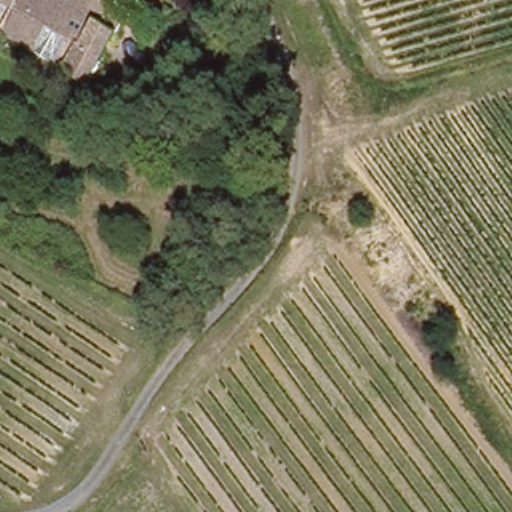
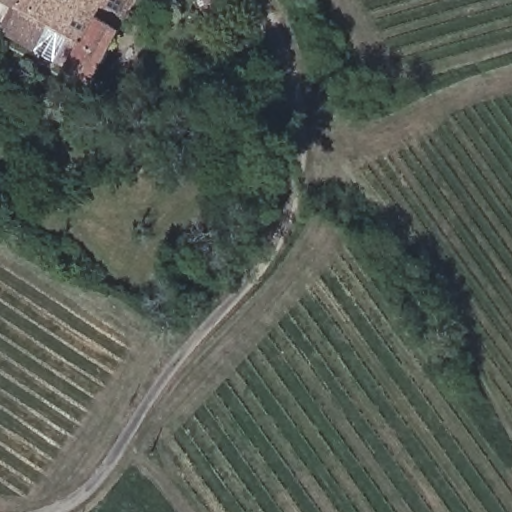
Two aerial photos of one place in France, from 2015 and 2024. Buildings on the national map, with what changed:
unchanged [(0,0),(67,0),(71,2),(72,0),(136,0),(91,85),(0,35),(0,0)]
unchanged [(205,13),(197,0),(229,0),(205,13)]
unchanged [(248,50),(236,28),(246,23),(257,45),(248,50)]

